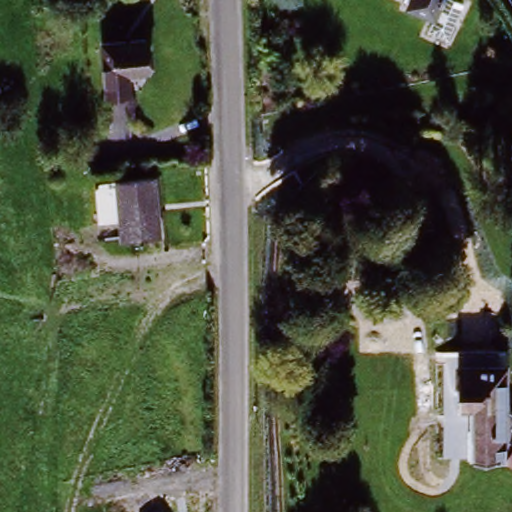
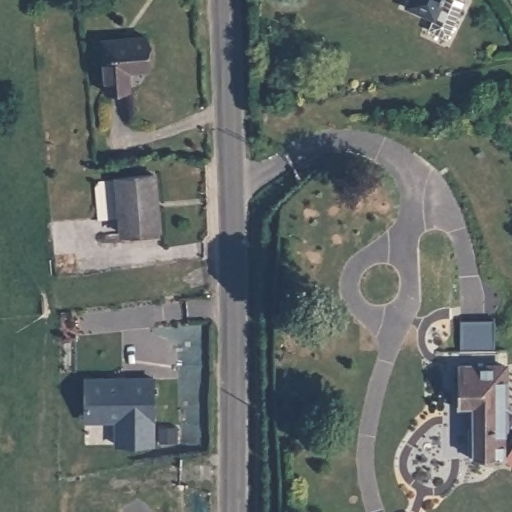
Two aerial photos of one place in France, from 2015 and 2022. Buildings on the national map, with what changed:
unchanged [(427,26),(432,15),(405,4),(407,0),(462,0),(446,35),(427,26)]
unchanged [(147,38),(150,70),(130,72),(130,93),(107,94),(104,41),(147,38)]
unchanged [(154,175),(157,230),(120,233),(117,178),(154,175)]
unchanged [(469,459),(469,410),(457,410),(457,368),(503,366),(504,403),(505,458),(469,459)]
new [(85,375),(160,377),(159,448),(112,448),(112,424),(84,420),(85,375)]
unchanged [(504,403),(512,408),(512,462),(505,458),(504,403)]

